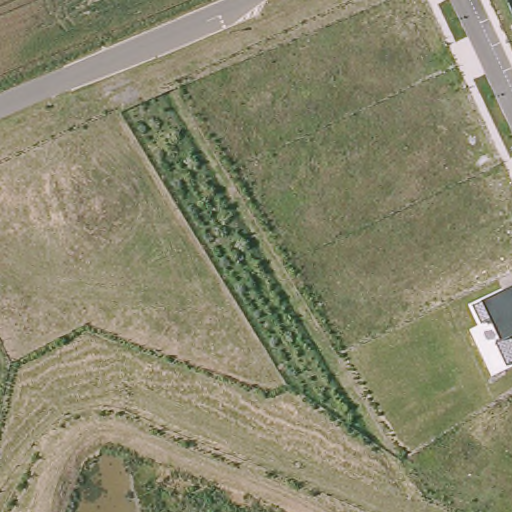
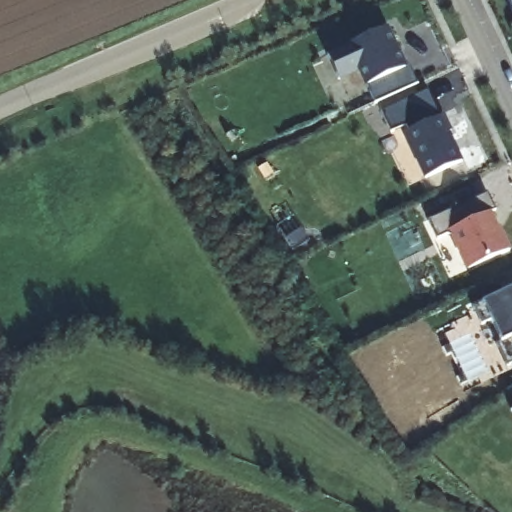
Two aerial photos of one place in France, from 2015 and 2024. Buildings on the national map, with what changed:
unchanged [(508,0),(512,0),(512,13),(508,0)]
new [(417,83),(374,100),(360,70),(340,77),(327,52),(387,26),(417,83)]
new [(402,127),(390,132),(380,112),(430,91),(441,114),(404,131),(402,127)]
new [(441,114),(462,161),(420,179),(404,131),(441,114)]
new [(510,247),(465,268),(452,233),(439,239),(430,222),(489,196),(510,247)]
unchanged [(482,302),(512,288),(512,364),(505,367),(495,345),(500,342),(491,321),(481,325),(472,306),(482,302)]
new [(510,408),(512,407),(512,412),(510,408)]

